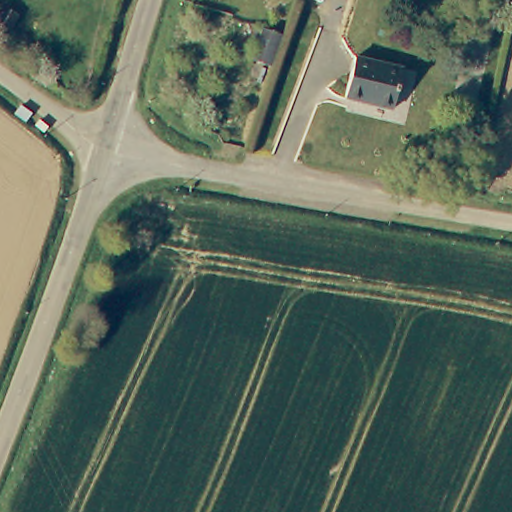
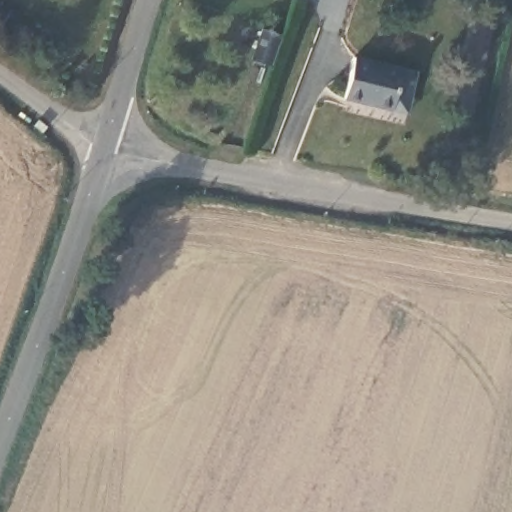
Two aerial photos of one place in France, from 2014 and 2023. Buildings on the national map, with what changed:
unchanged [(231,66),(244,32),(260,39),(247,72),(231,66)]
unchanged [(393,112),(347,101),(356,61),(403,72),(393,112)]

